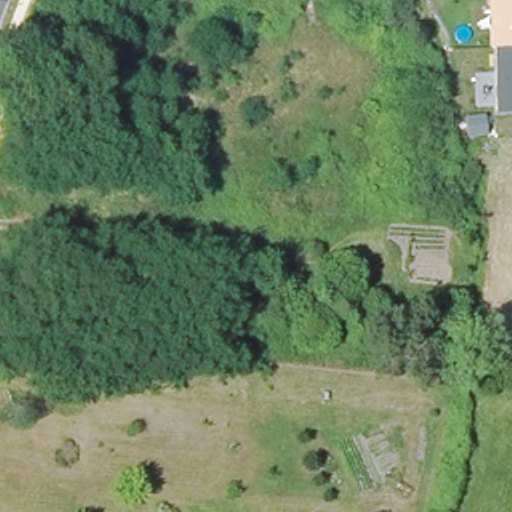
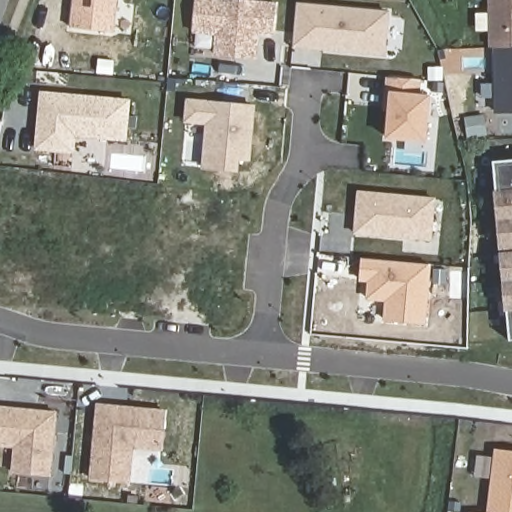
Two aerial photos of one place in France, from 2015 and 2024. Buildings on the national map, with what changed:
new [(73,0),(118,0),(115,33),(69,29),(73,0)]
new [(257,59),(212,55),(215,35),(192,34),(195,0),(250,0),(277,3),(275,38),(259,35),(257,59)]
unchanged [(496,113),(496,47),(490,47),(489,0),(512,0),(512,113),(496,113)]
new [(293,48),(297,2),(390,11),(386,56),(293,48)]
new [(386,139),(387,111),(382,111),(385,76),(421,80),(420,94),(430,95),(427,143),(386,139)]
new [(126,143),(76,138),(75,154),(34,150),(39,90),(131,99),(126,143)]
new [(251,161),(240,160),(239,173),(200,169),(205,125),(184,124),(186,98),(255,104),(251,161)]
new [(510,342),(507,311),(505,312),(493,192),(495,191),(493,162),(512,160),(512,341),(510,342)]
new [(436,255),(399,253),(400,241),(351,237),(356,190),(442,198),(436,255)]
new [(426,324),(382,322),(383,303),(364,301),(366,284),(358,283),(360,259),(431,264),(426,324)]
new [(167,411),(164,451),(134,449),(131,483),(90,479),(97,404),(167,411)]
new [(14,447),(0,445),(0,407),(52,411),(45,474),(11,472),(14,447)]
new [(494,449),(512,451),(512,512),(485,512),(494,449)]

